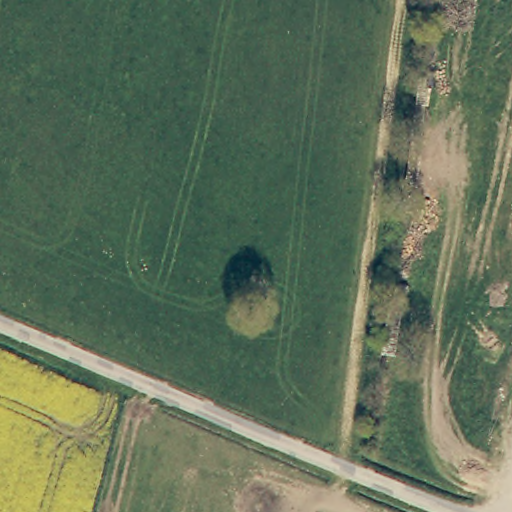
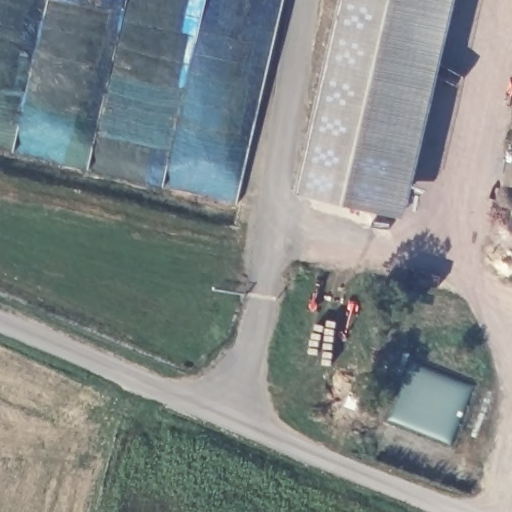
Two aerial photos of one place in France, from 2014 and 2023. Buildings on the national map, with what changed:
new [(347,0),(458,0),(406,219),(301,193),(347,0)]

